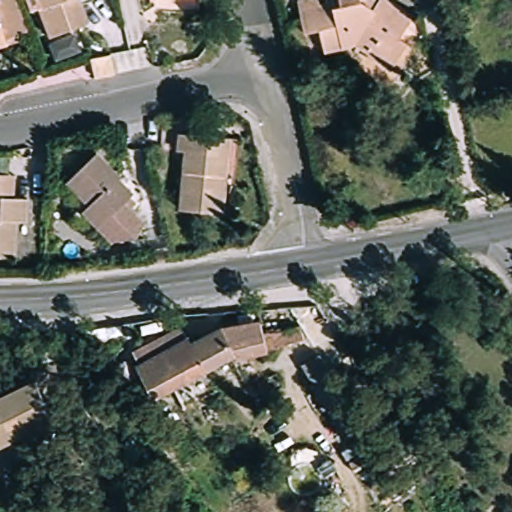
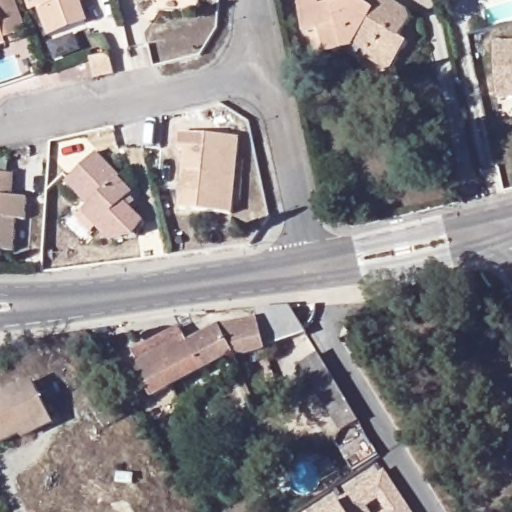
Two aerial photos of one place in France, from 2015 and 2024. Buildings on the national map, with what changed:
unchanged [(86,30),(49,45),(36,10),(29,13),(23,0),(89,0),(79,4),(86,30)]
unchanged [(332,55),(327,55),(321,31),(306,35),(299,0),(321,0),(323,12),(336,10),(334,0),(363,0),(365,7),(384,4),(415,24),(402,44),(411,50),(393,75),(370,61),(372,58),(358,47),(332,55)]
unchanged [(0,51),(0,10),(10,49),(0,51)]
new [(512,42),(512,98),(497,99),(492,44),(512,42)]
unchanged [(90,60),(110,55),(114,75),(95,79),(90,60)]
unchanged [(221,213),(179,210),(180,187),(184,187),(186,173),(181,172),(183,150),(177,150),(178,133),(227,136),(224,175),(223,191),(221,213)]
unchanged [(120,181),(117,184),(133,197),(124,207),(144,226),(139,242),(113,246),(83,217),(89,210),(67,187),(96,159),(120,181)]
unchanged [(0,191),(0,175),(9,175),(8,191),(0,191)]
unchanged [(25,221),(16,221),(15,252),(0,252),(0,198),(25,199),(25,221)]
unchanged [(265,316),(267,328),(305,321),(308,334),(248,351),(236,350),(159,391),(137,350),(186,324),(194,340),(224,326),(224,322),(265,316)]
unchanged [(347,427),(318,376),(307,358),(325,349),(365,417),(347,427)]
unchanged [(22,434),(0,444),(0,398),(35,382),(51,416),(55,425),(25,439),(22,434)]
unchanged [(117,397),(92,411),(83,397),(108,382),(117,397)]
new [(339,501),(385,470),(412,512),(386,512),(387,511),(379,500),(367,508),(370,512),(322,512),(339,501)]

